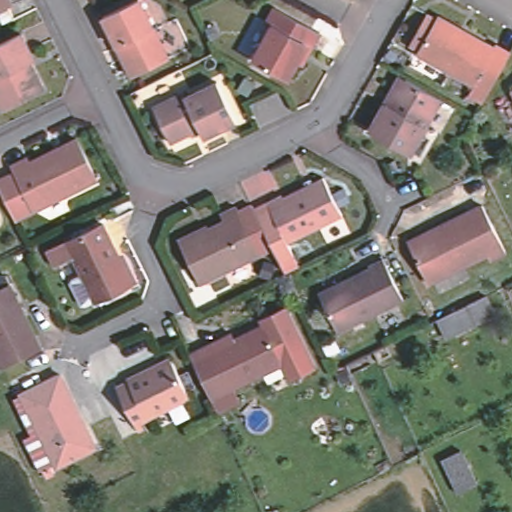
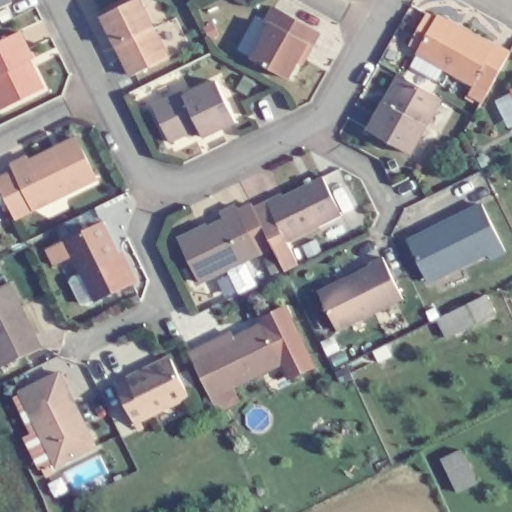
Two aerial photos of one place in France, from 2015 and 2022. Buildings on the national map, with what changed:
unchanged [(10,2),(0,6),(0,0),(9,0),(10,2)]
unchanged [(120,49),(118,50),(103,21),(140,2),(155,34),(169,63),(132,81),(122,61),(125,60),(120,49)]
unchanged [(266,25),(274,11),(316,35),(288,83),(252,62),(272,29),(266,25)]
unchanged [(476,89),(418,56),(439,20),(493,51),(495,47),(511,57),(491,94),(484,108),(469,100),(476,89)]
unchanged [(29,64),(32,71),(35,70),(45,91),(6,110),(0,99),(0,47),(24,36),(36,61),(29,64)]
unchanged [(413,158),(372,134),(389,107),(405,79),(410,82),(446,102),(413,158)]
unchanged [(193,95),(221,81),(240,119),(205,136),(202,127),(170,143),(153,107),(190,89),(193,95)]
unchanged [(512,84),(512,93),(509,86),(512,84)]
unchanged [(25,162),(21,154),(39,145),(44,155),(71,142),(68,136),(85,127),(106,170),(43,200),(24,209),(5,172),(25,162)]
unchanged [(286,195),(288,197),(324,180),(343,219),(290,245),(270,203),(286,195)]
unchanged [(506,248),(488,258),(485,252),(426,281),(409,247),(406,241),(436,225),(482,201),(506,248)]
unchanged [(203,285),(182,241),(202,231),(203,234),(225,222),(222,216),(238,208),(240,212),(253,206),(255,210),(270,203),(290,245),(301,267),(287,274),(275,250),(261,256),(203,285)]
unchanged [(106,224),(135,284),(98,302),(69,241),(106,224)]
unchanged [(365,267),(380,260),(401,301),(339,332),(320,295),(367,272),(365,267)]
unchanged [(11,285),(43,350),(3,370),(0,363),(0,290),(11,285)]
unchanged [(216,410),(209,395),(187,350),(204,342),(228,331),(231,338),(264,322),(282,359),(233,382),(240,397),(216,410)]
unchanged [(437,345),(401,362),(391,343),(428,326),(437,345)]
unchanged [(144,428),(140,418),(124,387),(136,381),(133,376),(166,360),(184,397),(149,413),(153,424),(144,428)]
unchanged [(57,468),(21,393),(61,374),(69,390),(87,427),(97,449),(57,468)]
unchanged [(465,451),(481,485),(462,494),(446,460),(465,451)]

